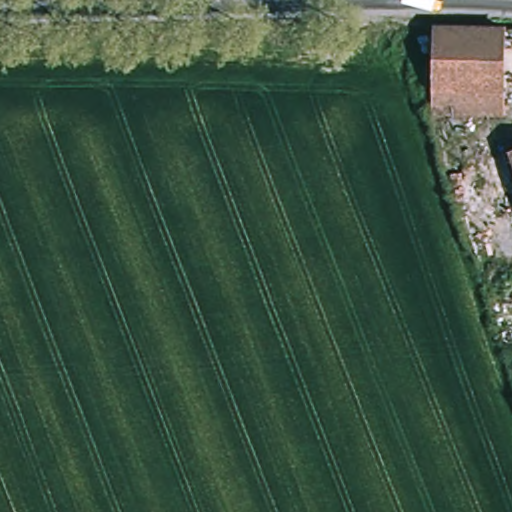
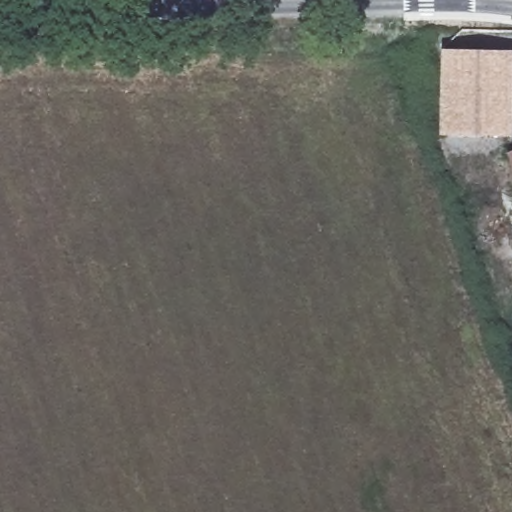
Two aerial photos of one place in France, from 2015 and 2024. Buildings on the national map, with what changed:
unchanged [(502,117),(430,115),(431,91),(432,29),(433,29),(503,30),(502,117)]
unchanged [(508,156),(507,152),(512,151),(512,169),(508,156)]

